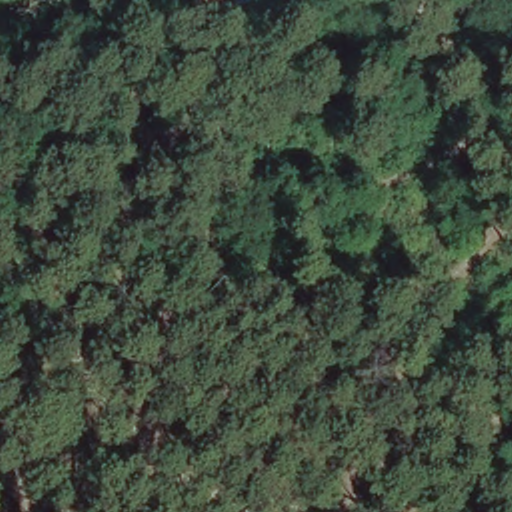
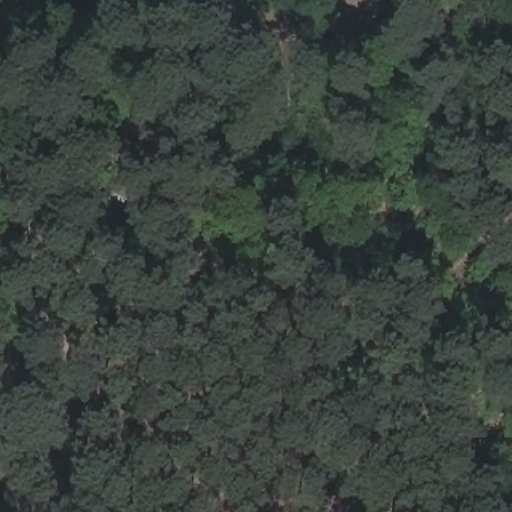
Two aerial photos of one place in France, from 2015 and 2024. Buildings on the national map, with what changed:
unchanged [(275,4),(274,0),(293,0),(275,4)]

